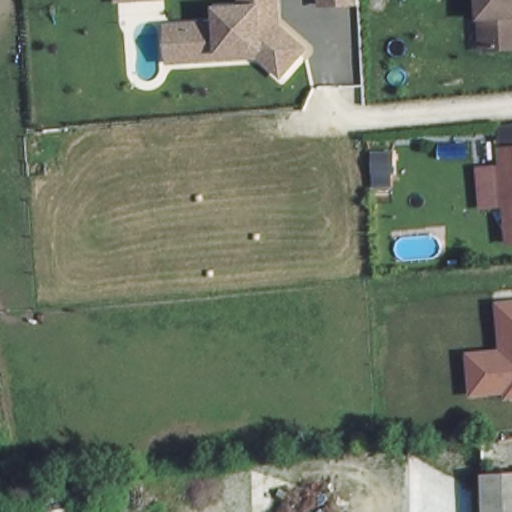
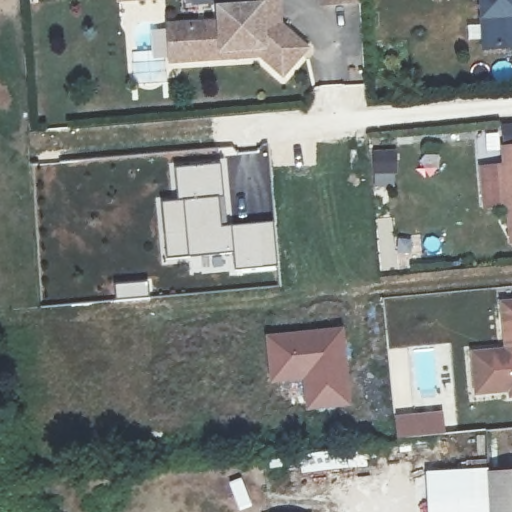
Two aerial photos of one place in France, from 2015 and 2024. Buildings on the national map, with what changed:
unchanged [(118,3),(117,0),(167,0),(168,1),(118,3)]
unchanged [(261,60),(170,64),(166,22),(218,20),(216,6),(240,5),(240,0),(280,0),(281,24),(311,47),(282,79),(261,60)]
unchanged [(318,0),(360,0),(361,5),(318,7),(318,0)]
unchanged [(490,42),(486,0),(512,0),(512,39),(490,42)]
unchanged [(509,243),(506,206),(483,209),(479,167),(504,166),(502,146),(512,145),(512,243),(509,243)]
new [(221,162),(223,196),(177,200),(174,167),(221,162)]
new [(177,200),(223,196),(224,200),(221,200),(223,225),(230,225),(231,255),(163,260),(160,201),(177,200)]
new [(274,221),(279,266),(231,272),(231,255),(230,225),(274,221)]
new [(147,282),(148,297),(116,300),(115,284),(147,282)]
unchanged [(509,400),(508,393),(474,397),(469,352),(503,347),(498,302),(512,301),(512,399),(509,400)]
new [(306,410),(303,381),(270,383),(266,336),(342,328),(351,405),(306,410)]
new [(367,448),(368,466),(300,473),(298,453),(367,448)]
new [(425,472),(486,469),(486,475),(486,512),(427,512),(425,472)]
unchanged [(512,473),(512,512),(486,512),(486,475),(512,473)]

